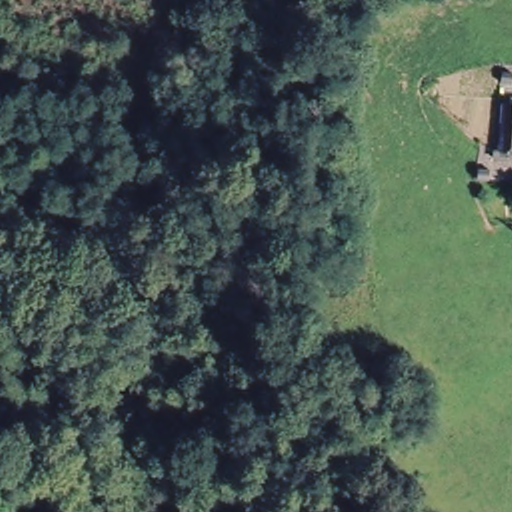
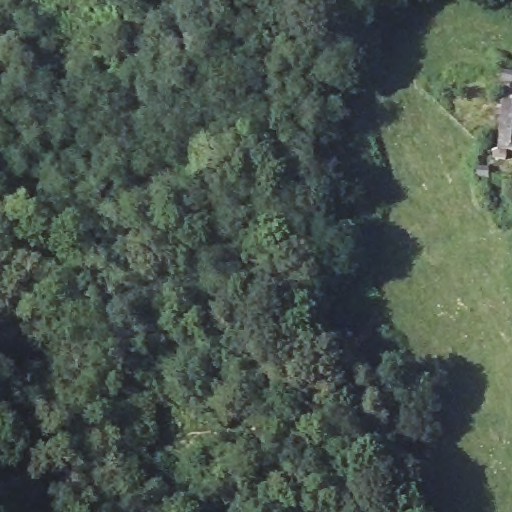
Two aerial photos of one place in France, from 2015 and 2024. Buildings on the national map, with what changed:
unchanged [(497,104),(512,105),(512,153),(493,152),(497,104)]

